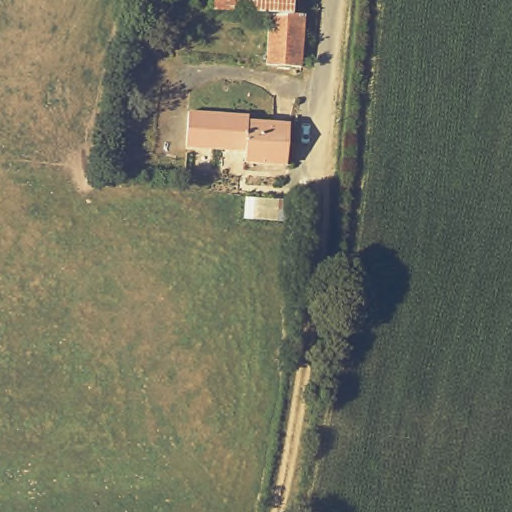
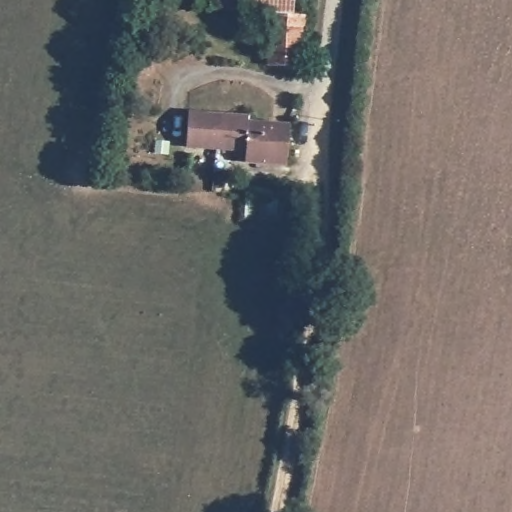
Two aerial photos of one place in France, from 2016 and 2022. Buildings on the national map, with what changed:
unchanged [(270,13),(215,10),(215,0),(293,0),(292,14),(270,13)]
unchanged [(270,13),(292,14),(305,15),(301,67),(266,65),(270,13)]
unchanged [(245,162),(245,151),(185,146),(189,112),(249,116),(248,121),(289,124),(286,165),(245,162)]

